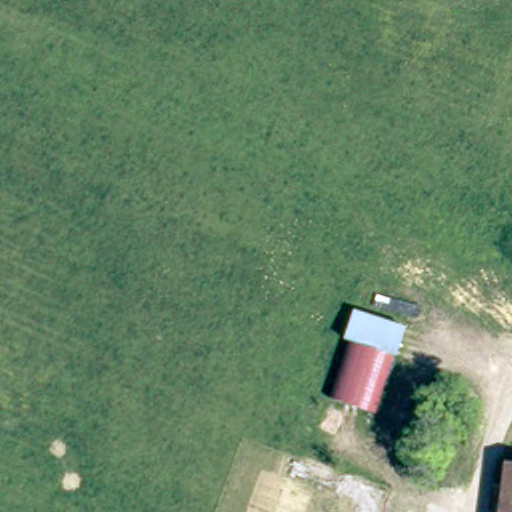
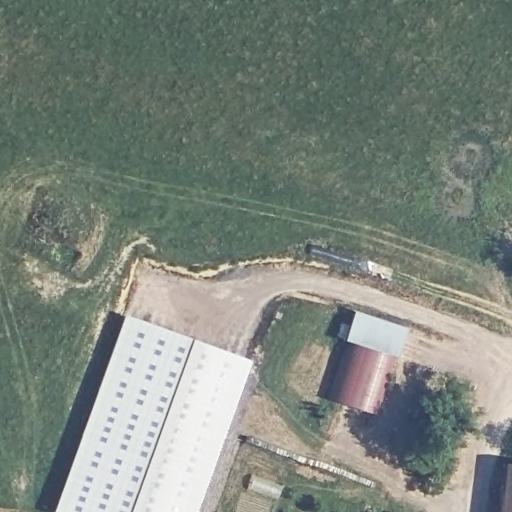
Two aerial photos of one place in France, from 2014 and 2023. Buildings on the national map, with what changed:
new [(123,313),(248,359),(191,512),(50,512),(123,313)]
unchanged [(350,346),(346,344),(358,317),(407,338),(395,364),(350,346)]
unchanged [(370,421),(325,402),(350,346),(395,364),(370,421)]
unchanged [(500,489),(508,464),(512,464),(512,491),(503,490),(500,489)]
unchanged [(503,490),(512,491),(512,512),(499,512),(503,490)]

